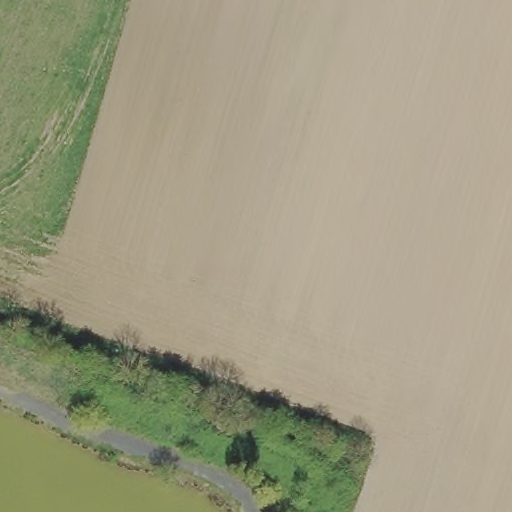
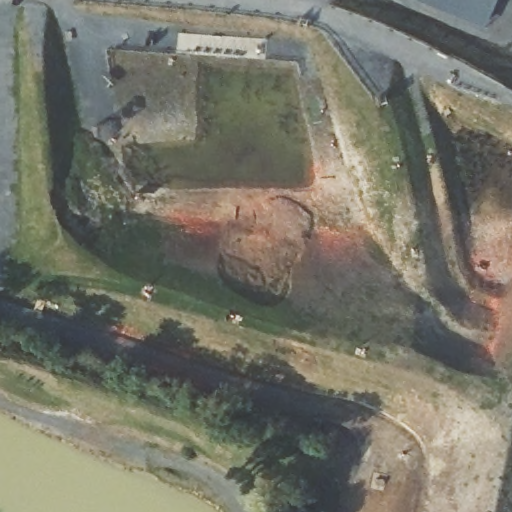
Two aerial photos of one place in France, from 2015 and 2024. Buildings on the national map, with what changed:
new [(416,1),(417,0),(496,0),(484,30),(416,1)]

